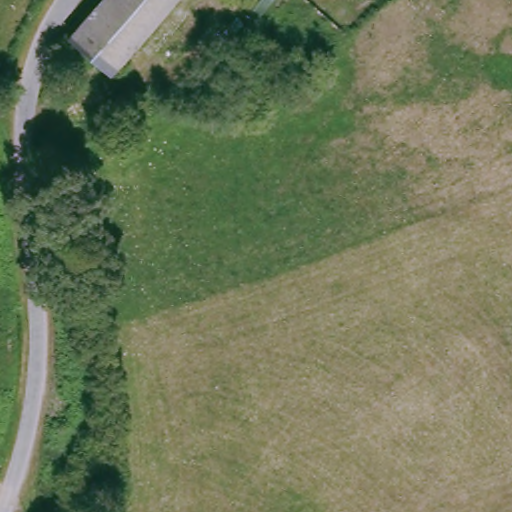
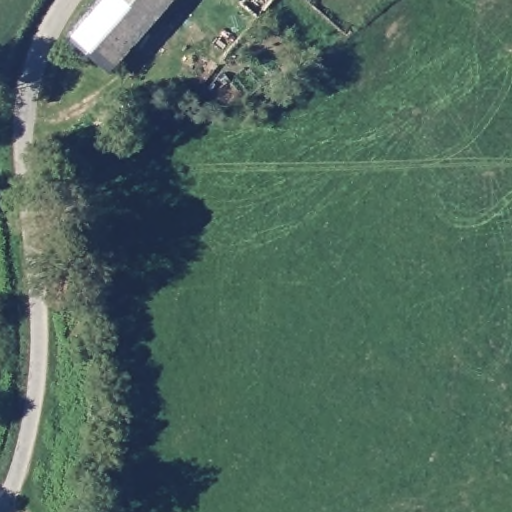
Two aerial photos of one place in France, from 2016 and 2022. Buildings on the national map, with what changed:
unchanged [(98,0),(169,0),(103,69),(67,32),(98,0)]

